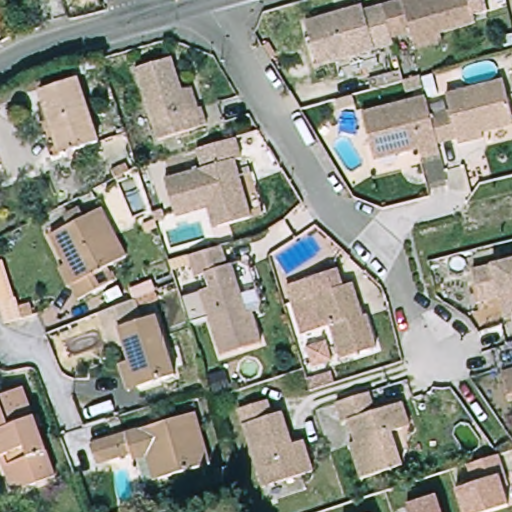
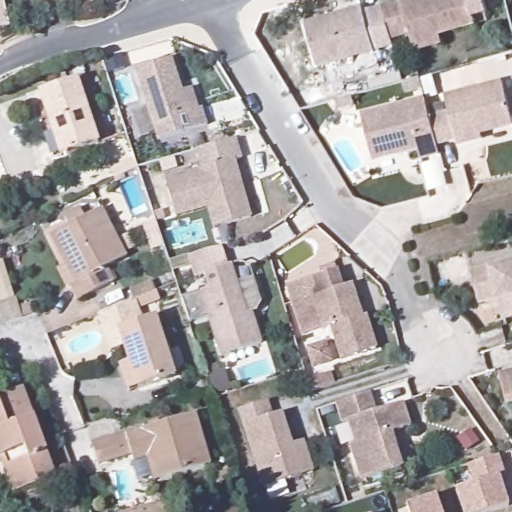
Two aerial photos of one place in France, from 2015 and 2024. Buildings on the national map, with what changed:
unchanged [(416,39),(414,31),(394,37),(384,4),(399,0),(470,0),(476,21),(444,31),(447,41),(419,49),(416,39)]
unchanged [(339,75),(336,61),(318,66),(306,22),(362,6),(364,10),(384,4),(394,37),(396,44),(376,49),(381,63),(339,75)]
unchanged [(201,113),(203,112),(208,129),(160,143),(139,72),(176,61),(186,93),(194,91),(201,113)]
unchanged [(456,138),(454,131),(435,136),(429,108),(448,103),(444,86),(502,71),(512,114),(512,116),(480,124),(482,131),(456,138)]
unchanged [(43,123),(50,120),(40,90),(79,78),(99,142),(54,157),(43,123)]
unchanged [(419,151),(417,141),(371,152),(359,103),(424,87),(429,108),(435,136),(438,147),(419,151)]
unchanged [(209,211),(178,219),(176,213),(166,178),(202,168),(197,149),(241,136),(246,157),(240,160),(244,175),(228,181),(233,196),(243,193),(251,218),(221,227),(213,230),(209,211)]
unchanged [(128,257),(108,267),(115,281),(78,300),(71,287),(77,283),(50,234),(103,208),(128,257)]
unchanged [(221,246),(227,267),(231,265),(247,314),(254,312),(263,344),(221,357),(201,291),(210,288),(206,274),(196,276),(190,255),(221,246)]
unchanged [(497,298),(478,303),(469,270),(512,259),(512,318),(502,320),(497,298)]
unchanged [(339,270),(344,287),(353,284),(364,316),(369,314),(379,349),(345,360),(334,326),(324,329),(314,332),(303,300),(313,296),(307,280),(339,270)]
unchanged [(136,371),(130,355),(115,360),(105,329),(103,323),(139,309),(135,299),(158,290),(161,300),(164,308),(143,316),(147,330),(161,326),(181,385),(144,397),(134,400),(126,374),(136,371)]
unchanged [(506,414),(497,378),(512,374),(512,412),(506,414)]
unchanged [(14,492),(0,454),(0,397),(24,388),(56,477),(14,492)]
unchanged [(373,415),(393,410),(401,407),(408,429),(400,431),(389,435),(399,470),(359,483),(348,447),(355,445),(349,425),(343,427),(335,406),(366,396),(373,415)]
unchanged [(314,469),(304,473),(266,486),(241,408),(269,399),(275,414),(284,412),(294,444),(305,440),(314,469)]
unchanged [(196,413),(211,463),(153,480),(145,450),(98,464),(93,444),(196,413)]
unchanged [(467,465),(469,464),(498,456),(504,476),(507,487),(501,489),(506,507),(490,512),(460,512),(454,489),(472,484),(467,465)]
unchanged [(409,504),(439,495),(444,512),(411,512),(409,504)]

